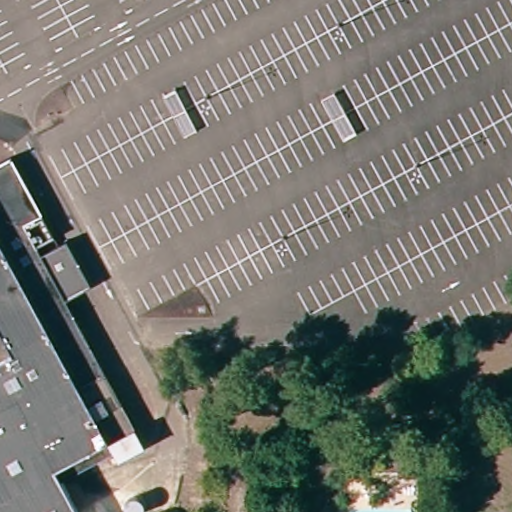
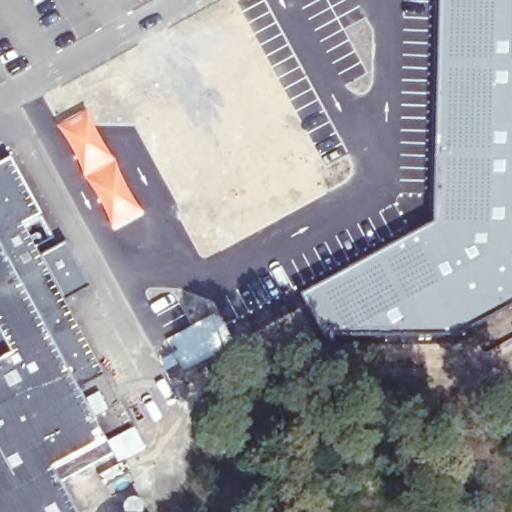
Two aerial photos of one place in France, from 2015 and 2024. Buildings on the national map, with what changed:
new [(434,173),(439,0),(512,0),(512,303),(509,305),(464,331),(455,335),(399,338),(340,337),(324,340),(300,294),(434,222),(434,173)]
unchanged [(14,164),(63,252),(71,248),(96,294),(71,308),(151,454),(123,469),(119,460),(67,489),(80,512),(0,512),(0,171),(14,164)]

